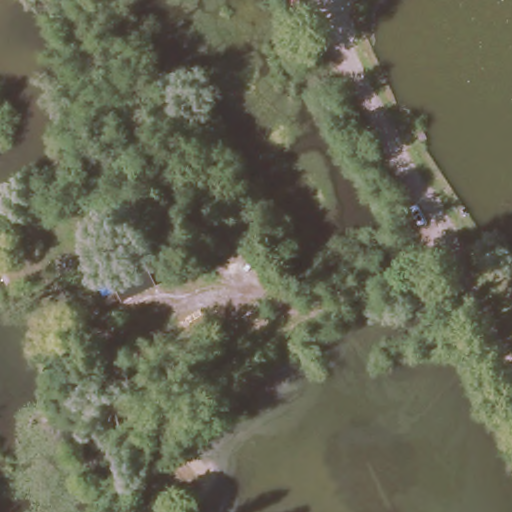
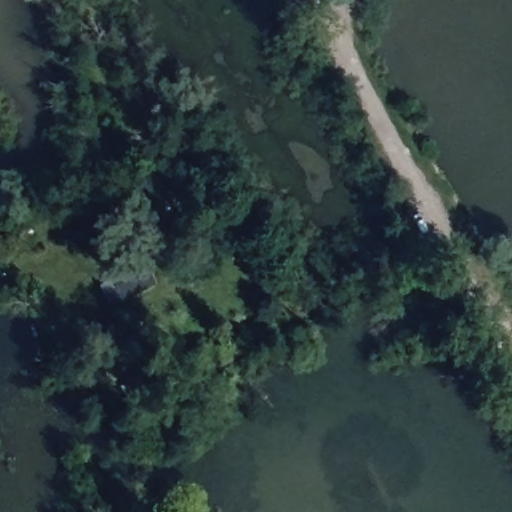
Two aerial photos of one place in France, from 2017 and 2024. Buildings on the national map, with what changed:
unchanged [(132,289),(111,304),(99,281),(120,267),(132,289)]

